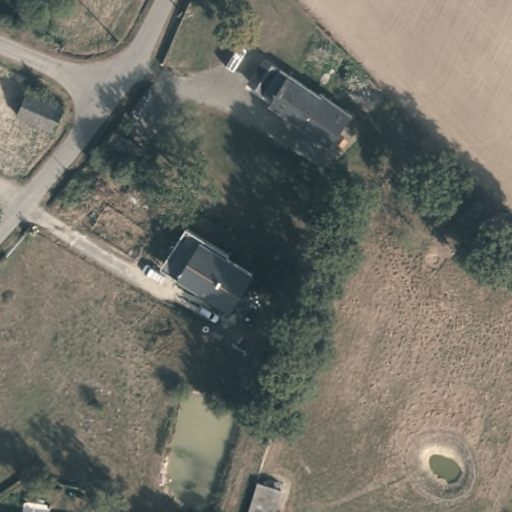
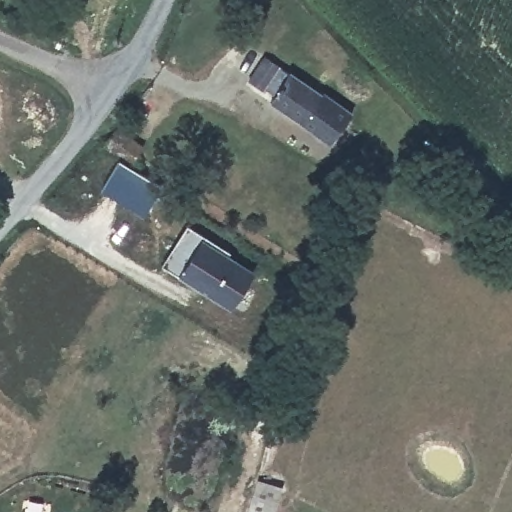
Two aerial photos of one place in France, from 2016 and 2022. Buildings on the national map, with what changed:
unchanged [(322,92),(353,112),(349,117),(359,124),(345,143),(334,136),(329,144),(269,102),(289,74),(319,95),(322,92)]
unchanged [(23,109),(34,85),(69,103),(58,126),(23,109)]
new [(119,161),(162,187),(143,217),(100,191),(119,161)]
unchanged [(163,266),(188,226),(253,267),(232,309),(163,266)]
unchanged [(277,512),(248,512),(255,479),(284,487),(277,512)]

